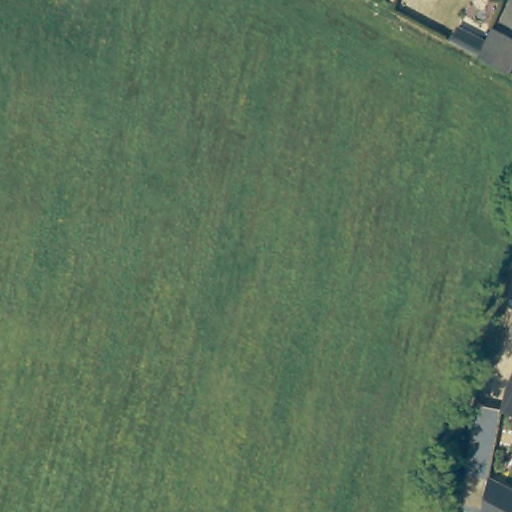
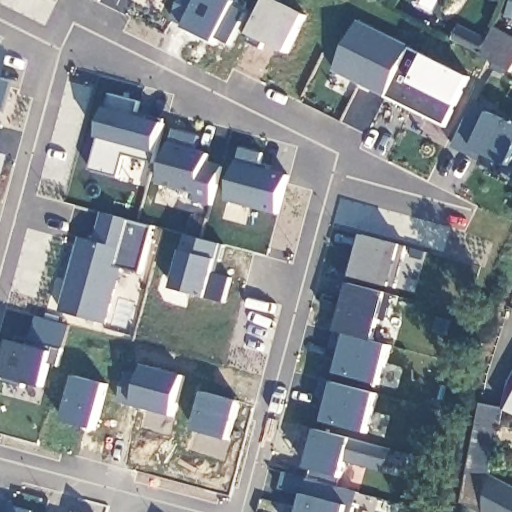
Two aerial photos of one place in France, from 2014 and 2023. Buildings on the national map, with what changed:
new [(182,0),(228,0),(235,3),(232,7),(245,14),(230,46),(216,40),(214,44),(185,30),(186,27),(171,21),(182,0)]
new [(266,0),(269,0),(305,17),(286,55),(264,44),(260,51),(245,43),(266,0)]
new [(335,70),(359,21),(411,47),(426,54),(471,77),(446,127),(387,97),(335,70)]
unchanged [(480,55),(451,40),(457,27),(485,41),(490,32),(512,41),(512,72),(480,55)]
new [(0,98),(0,84),(4,85),(0,98)]
new [(154,165),(125,157),(119,180),(90,172),(110,95),(139,103),(135,117),(165,125),(154,165)]
new [(491,114),(512,125),(512,163),(510,167),(483,155),(480,161),(453,147),(476,101),(493,109),(491,114)]
new [(160,184),(171,143),(175,131),(200,137),(196,151),(210,154),(207,162),(222,167),(212,205),(196,202),(198,194),(160,184)]
new [(279,215),(227,202),(238,162),(241,148),(263,153),(260,169),(289,175),(279,215)]
new [(80,239),(95,242),(103,213),(154,227),(141,274),(120,268),(105,325),(60,312),(80,239)]
new [(216,275),(231,278),(224,303),(172,290),(186,236),(224,246),(216,275)]
new [(365,236),(404,246),(392,288),(354,277),(365,236)]
new [(391,295),(384,321),(380,320),(374,342),(337,332),(350,283),(391,295)]
new [(337,332),(374,342),(392,347),(382,386),(339,375),(345,352),(333,350),(337,332)]
new [(2,382),(4,375),(12,342),(30,346),(30,341),(63,350),(59,366),(50,363),(44,386),(25,382),(23,387),(2,382)]
new [(140,377),(143,366),(184,377),(172,417),(117,402),(125,372),(140,377)]
unchanged [(502,411),(507,385),(512,376),(512,415),(502,411)]
new [(62,422),(75,377),(106,385),(94,430),(62,422)]
new [(322,380),(377,394),(366,433),(323,422),(330,400),(317,397),(322,380)]
new [(205,392),(240,402),(229,440),(195,431),(205,392)]
new [(481,405),(502,411),(489,479),(483,512),(474,512),(461,502),(481,405)]
new [(308,458),(316,430),(385,448),(379,469),(345,460),(340,478),(305,469),(308,458)]
new [(279,489),(283,473),(308,480),(351,492),(357,493),(353,508),(352,512),(287,512),(289,506),(300,509),(303,496),(279,489)]
unchanged [(483,512),(489,479),(512,491),(512,512),(483,512)]
new [(31,512),(7,512),(9,506),(31,512)]

